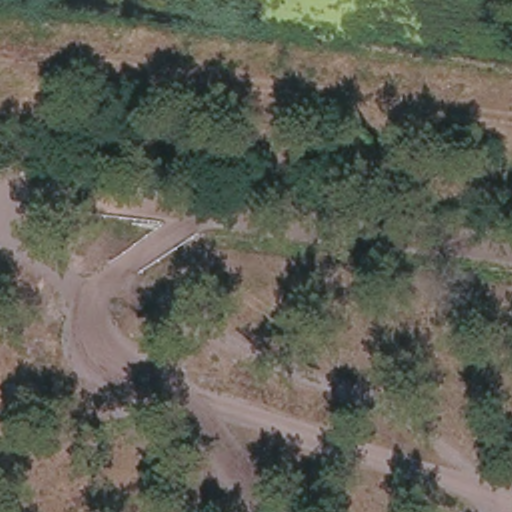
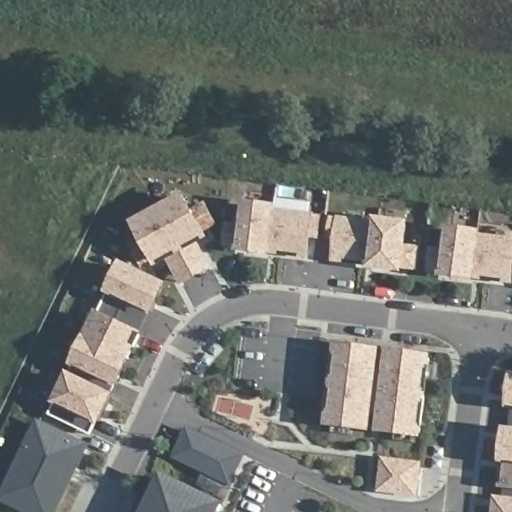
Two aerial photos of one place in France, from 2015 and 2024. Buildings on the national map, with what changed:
new [(186,192),(210,236),(200,241),(212,267),(181,284),(171,260),(160,266),(135,221),(186,192)]
new [(278,204),(278,211),(317,213),(313,253),(277,249),(276,255),(241,251),(245,200),(278,204)]
new [(372,221),(373,215),(410,218),(403,266),(332,257),(335,243),(330,242),(335,215),(372,221)]
new [(483,229),(483,235),(512,239),(512,282),(478,276),(477,280),(443,276),(448,224),(483,229)]
new [(170,284),(154,316),(107,288),(123,261),(170,284)]
new [(142,329),(104,423),(57,402),(98,311),(142,329)]
new [(435,354),(424,439),(332,429),(338,345),(435,354)]
new [(512,373),(512,408),(508,408),(510,372),(512,373)]
new [(62,512),(27,512),(0,498),(37,419),(92,444),(62,512)]
new [(248,455),(233,487),(172,456),(187,427),(248,455)]
new [(512,428),(512,491),(502,489),(506,463),(502,462),(507,427),(512,428)]
new [(425,462),(418,494),(379,490),(383,457),(425,462)]
new [(222,512),(142,512),(159,478),(163,472),(227,502),(222,512)]
new [(494,512),(497,498),(512,500),(512,512),(494,512)]

